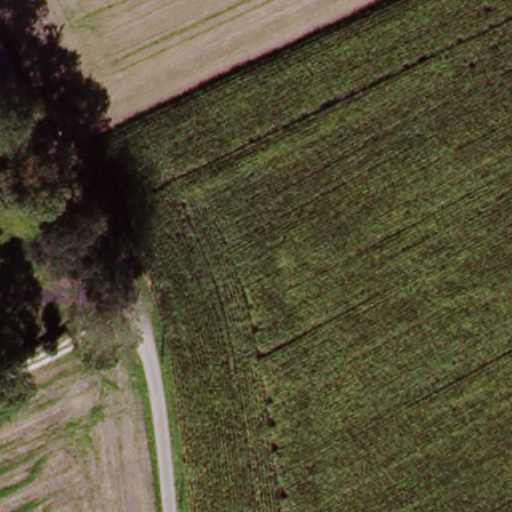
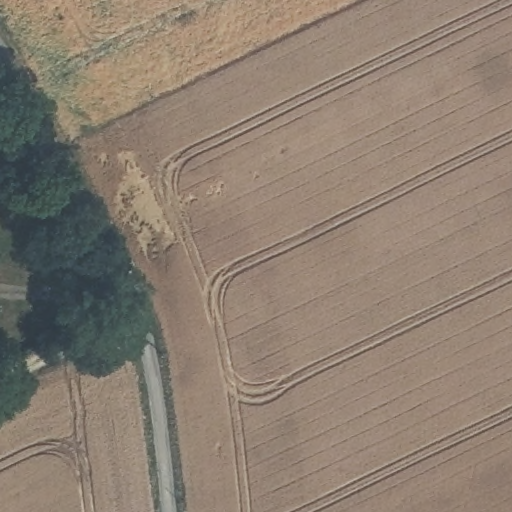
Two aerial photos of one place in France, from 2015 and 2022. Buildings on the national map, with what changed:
[]

